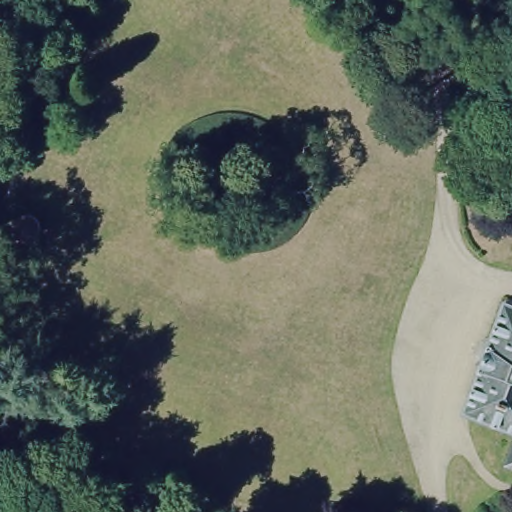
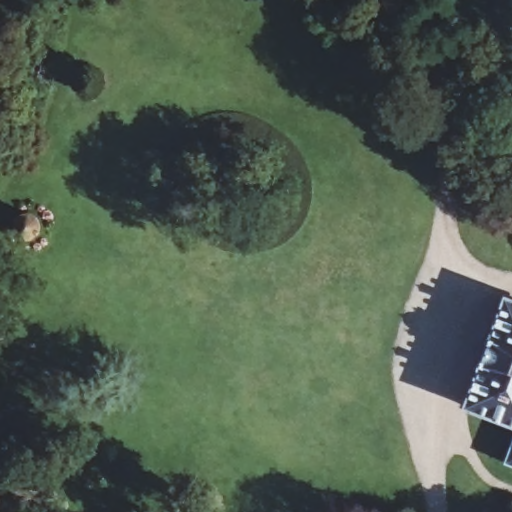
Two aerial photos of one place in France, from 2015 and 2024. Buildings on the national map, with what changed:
unchanged [(466,401),(506,295),(512,297),(512,418),(466,401)]
unchanged [(507,457),(512,445),(512,459),(507,457)]

